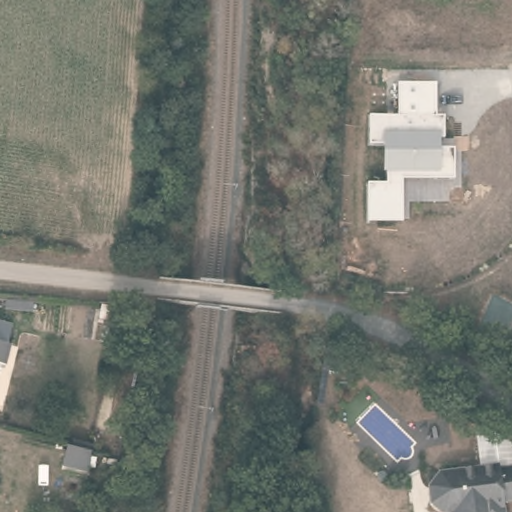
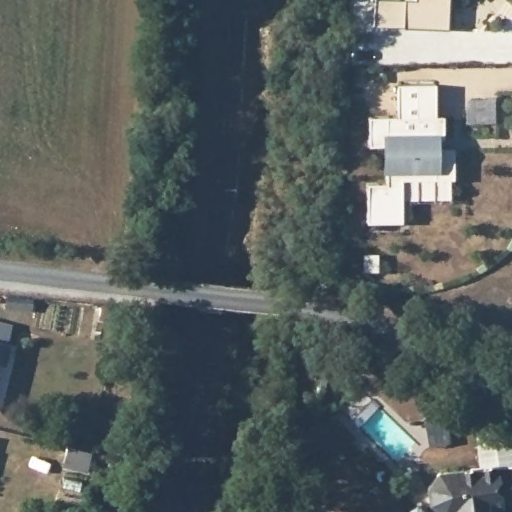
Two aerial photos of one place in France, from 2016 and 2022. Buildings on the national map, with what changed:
new [(448,29),(374,26),(375,0),(449,0),(448,29)]
unchanged [(454,179),(402,180),(403,222),(366,223),(366,182),(386,182),(386,172),(382,172),(382,146),(367,146),(367,115),(396,116),(396,81),(436,82),(436,115),(446,115),(446,137),(439,137),(439,147),(455,147),(454,179)]
unchanged [(10,336),(6,353),(8,354),(3,374),(0,373),(0,333),(10,336)]
new [(326,349),(342,356),(339,375),(322,372),(326,349)]
unchanged [(87,465),(61,459),(66,439),(91,445),(87,465)]
unchanged [(499,512),(426,512),(424,491),(432,481),(492,472),(492,477),(512,475),(512,505),(498,506),(499,512)]

